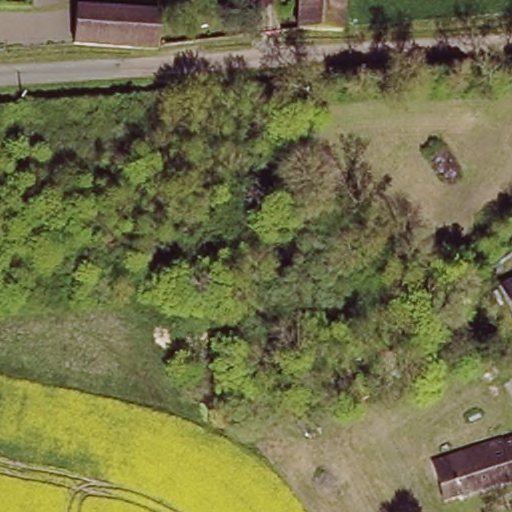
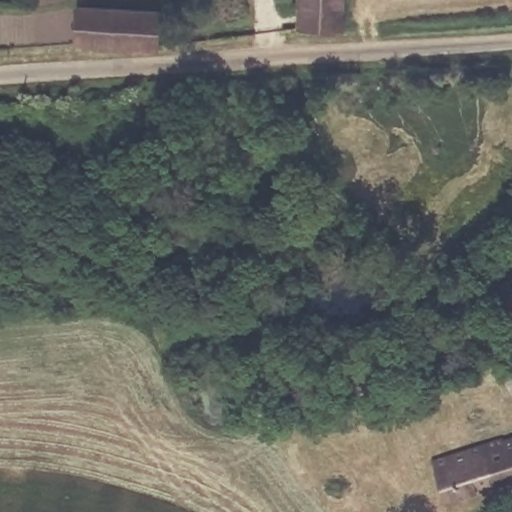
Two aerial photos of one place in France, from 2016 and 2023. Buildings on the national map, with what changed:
unchanged [(343,0),(342,31),(300,32),(301,0),(343,0)]
unchanged [(78,1),(162,8),(160,44),(160,49),(120,46),(76,44),(78,1)]
unchanged [(512,271),(512,301),(501,277),(512,271)]
unchanged [(446,454),(465,449),(465,450),(504,439),(505,443),(512,441),(512,483),(452,501),(440,467),(449,464),(446,454)]

